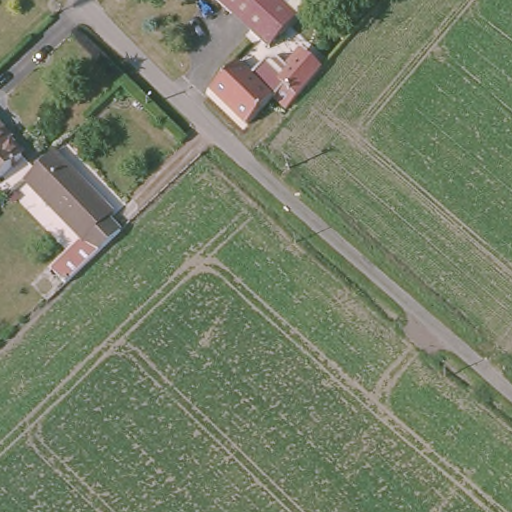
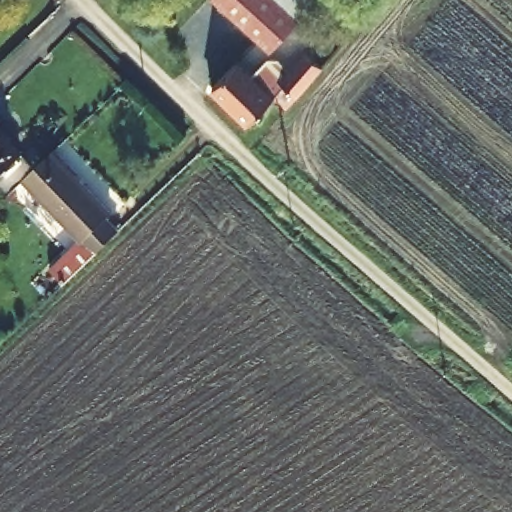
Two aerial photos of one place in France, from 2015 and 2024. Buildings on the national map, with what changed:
unchanged [(215,0),(276,0),(291,14),(263,44),(215,0)]
unchanged [(270,82),(266,77),(292,49),(309,63),(273,103),(260,92),(270,82)]
unchanged [(235,117),(202,86),(227,62),(260,92),(235,117)]
unchanged [(14,155),(0,169),(0,139),(14,155)]
unchanged [(80,233),(23,175),(55,144),(111,204),(107,209),(123,224),(68,278),(52,261),(80,233)]

